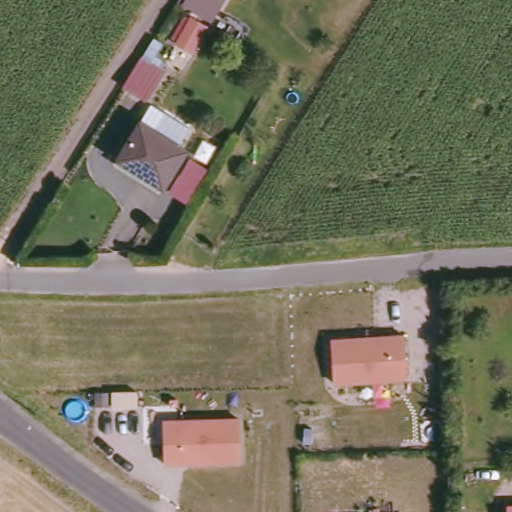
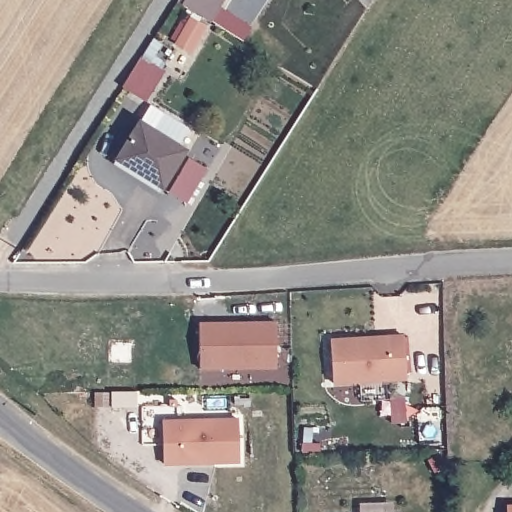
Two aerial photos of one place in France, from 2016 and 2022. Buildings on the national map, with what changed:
unchanged [(209,13),(191,1),(192,0),(218,0),(209,13)]
unchanged [(127,84),(134,71),(144,55),(155,36),(164,42),(152,61),(167,71),(149,98),(127,84)]
unchanged [(160,185),(113,156),(137,120),(185,148),(160,185)]
new [(278,366),(201,368),(200,323),(276,321),(278,366)]
unchanged [(333,342),(408,338),(409,384),(335,387),(333,342)]
unchanged [(164,422),(242,421),(242,465),(165,467),(164,422)]
unchanged [(512,507),(512,512),(510,512),(510,507),(512,507)]

